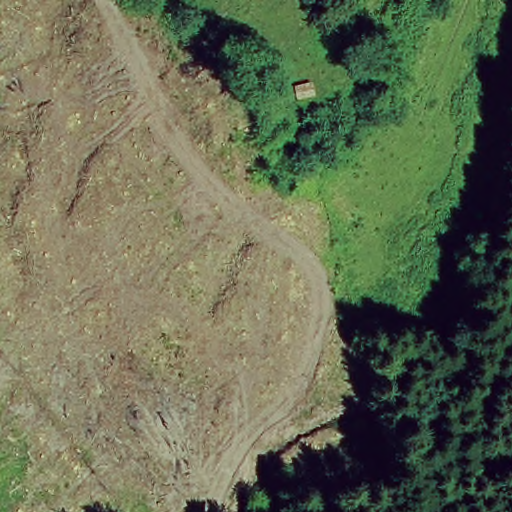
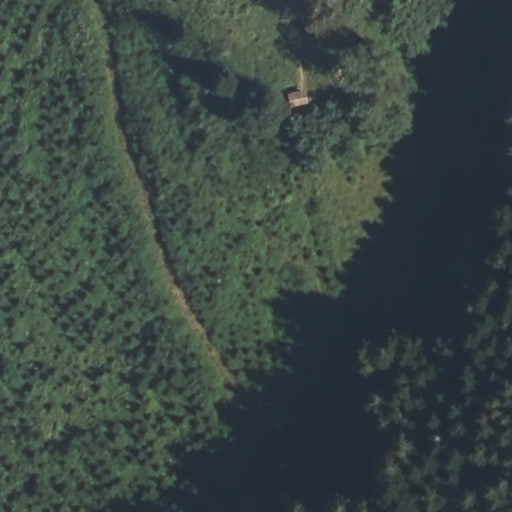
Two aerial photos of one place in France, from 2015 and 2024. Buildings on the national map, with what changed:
unchanged [(332,0),(337,0),(335,2),(332,0)]

